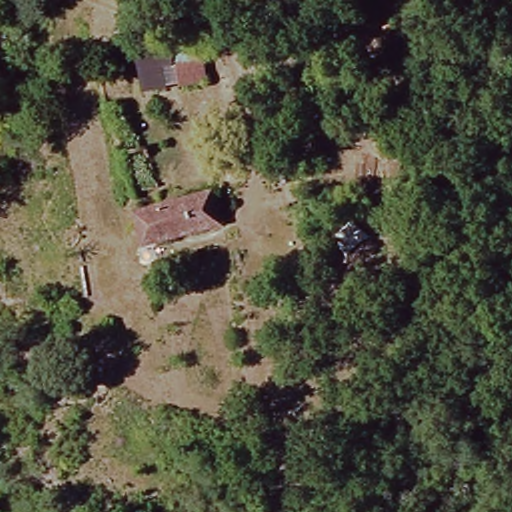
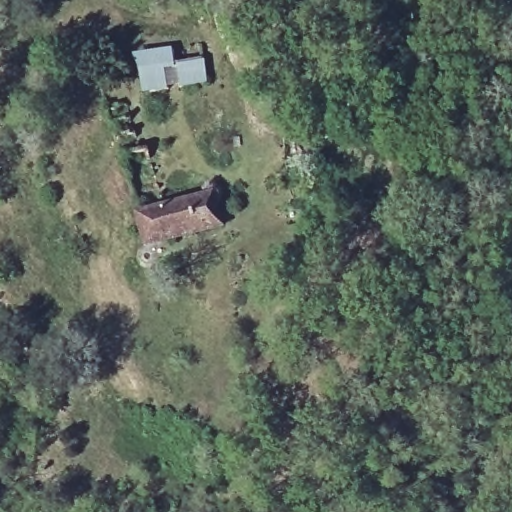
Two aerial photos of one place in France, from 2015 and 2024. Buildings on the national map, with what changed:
unchanged [(139,55),(163,52),(167,89),(142,88),(139,55)]
unchanged [(175,66),(205,59),(207,83),(181,87),(175,66)]
unchanged [(213,192),(222,229),(146,249),(136,212),(213,192)]

